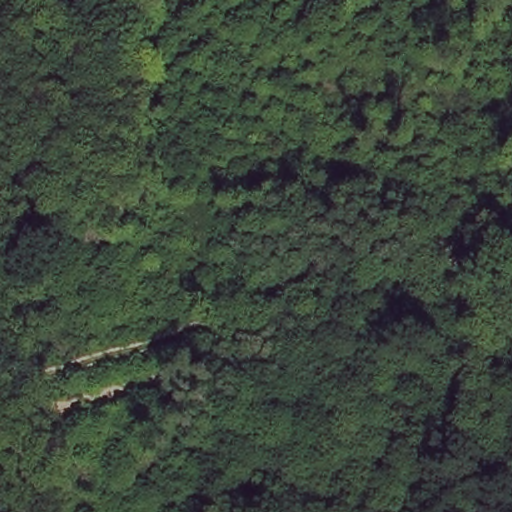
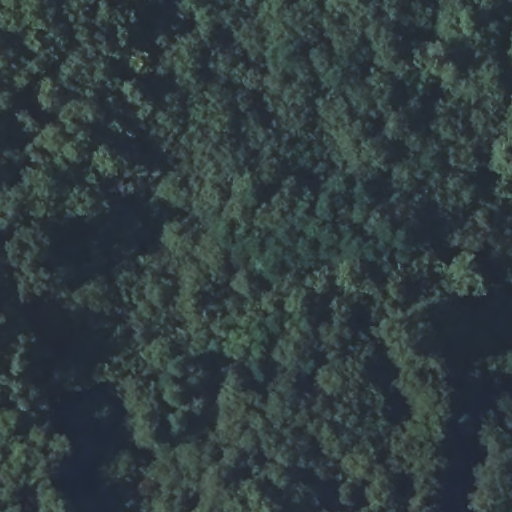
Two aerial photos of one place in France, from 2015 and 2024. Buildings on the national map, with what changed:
[]

